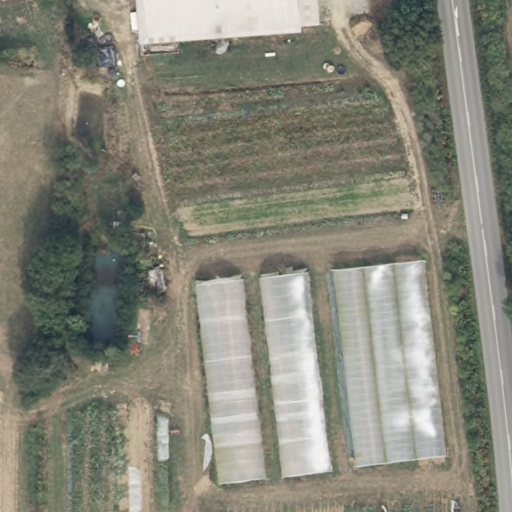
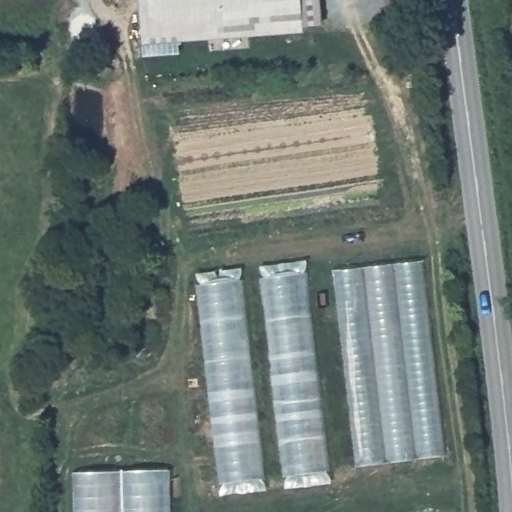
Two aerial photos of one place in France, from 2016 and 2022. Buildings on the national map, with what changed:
unchanged [(138,0),(319,0),(320,25),(301,26),(302,30),(142,40),(138,0)]
unchanged [(426,260),(450,455),(355,466),(333,270),(426,260)]
unchanged [(307,273),(328,470),(281,475),(259,278),(307,273)]
unchanged [(241,281),(263,477),(220,481),(196,286),(241,281)]
new [(169,512),(72,512),(71,471),(168,468),(169,512)]

